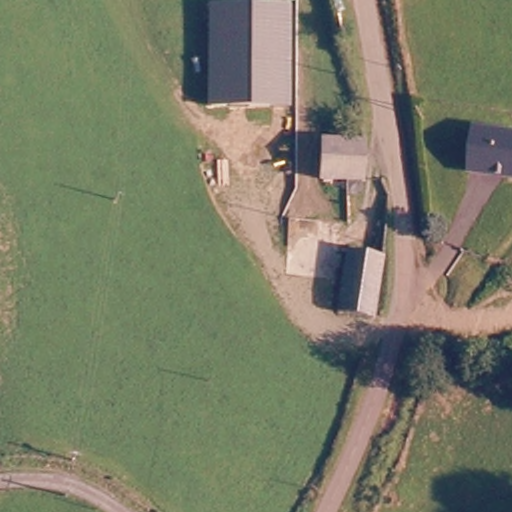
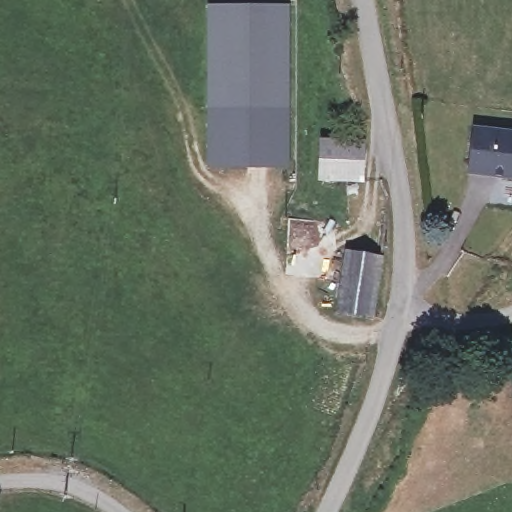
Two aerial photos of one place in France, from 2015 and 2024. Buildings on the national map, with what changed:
unchanged [(291,4),(292,107),(211,105),(211,5),(291,4)]
new [(292,107),(292,167),(209,167),(211,105),(292,107)]
unchanged [(470,119),(512,125),(512,172),(505,172),(464,167),(466,152),(470,119)]
unchanged [(347,179),(318,177),(323,135),(370,137),(366,178),(347,179)]
unchanged [(333,311),(343,251),(377,251),(367,318),(333,311)]

